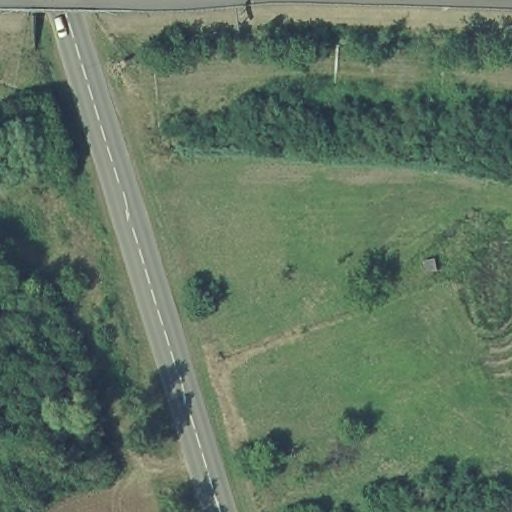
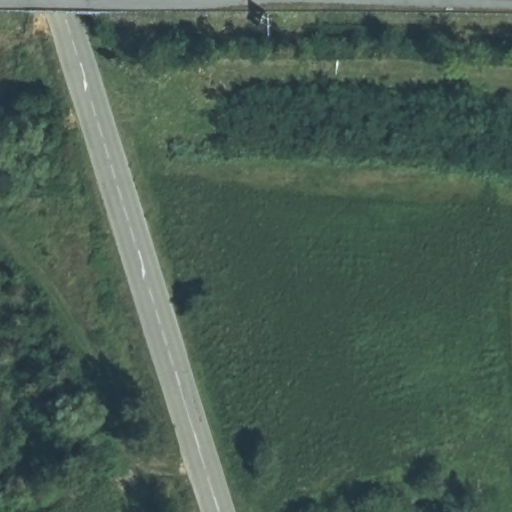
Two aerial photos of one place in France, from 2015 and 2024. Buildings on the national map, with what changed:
unchanged [(445,273),(419,283),(411,261),(434,253),(445,273)]

